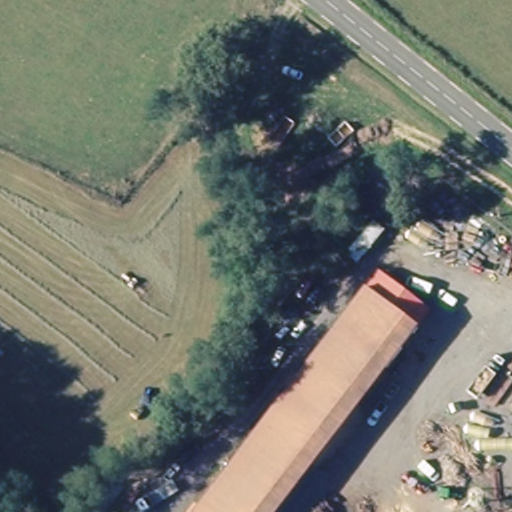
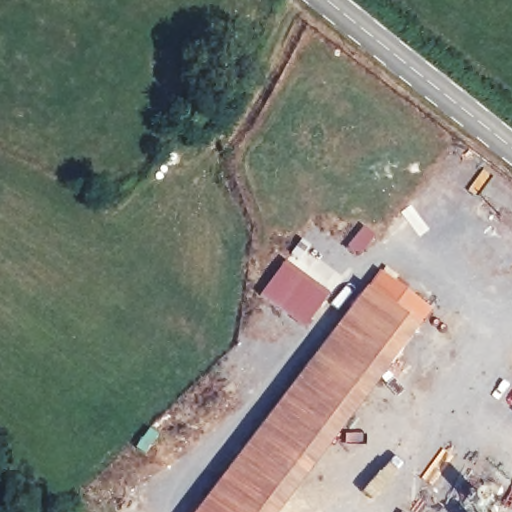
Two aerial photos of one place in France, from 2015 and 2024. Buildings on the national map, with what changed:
new [(284,259),(329,291),(304,327),(258,294),(284,259)]
unchanged [(341,331),(388,274),(436,313),(422,329),(427,335),(416,347),(394,375),(362,349),(341,331)]
unchanged [(341,331),(362,349),(394,375),(365,410),(282,512),(191,512),(284,400),(325,351),(341,331)]

